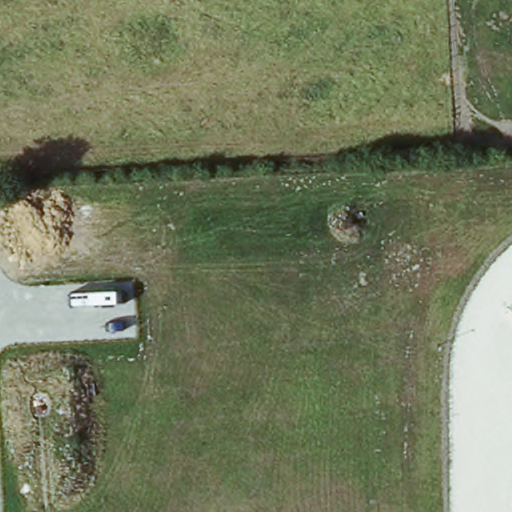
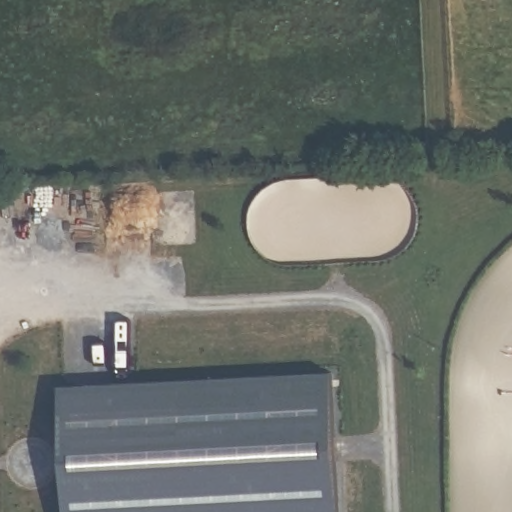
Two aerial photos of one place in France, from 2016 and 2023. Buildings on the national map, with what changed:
new [(333,382),(338,512),(68,512),(63,392),(333,382)]

